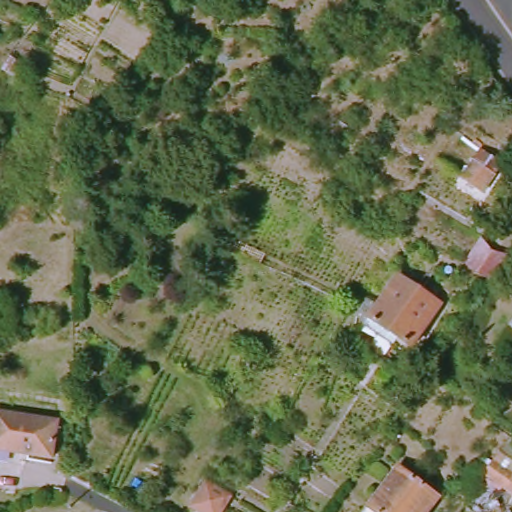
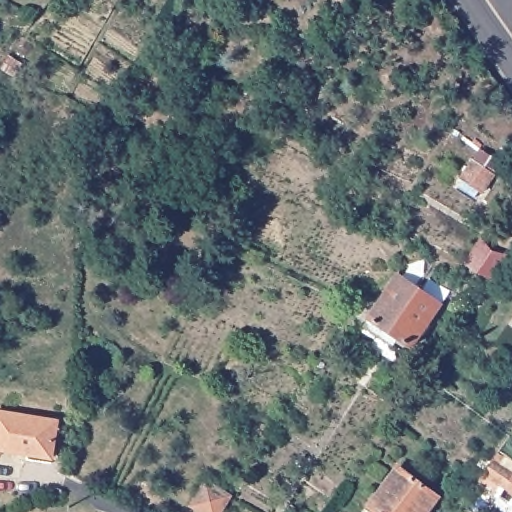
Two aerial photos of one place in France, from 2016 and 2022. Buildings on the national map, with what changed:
unchanged [(462,180),(473,165),(492,176),(480,193),(462,180)]
unchanged [(364,325),(398,279),(433,304),(399,352),(364,325)]
unchanged [(0,453),(0,416),(52,423),(46,460),(0,453)]
unchanged [(493,461),(512,474),(512,493),(505,488),(484,475),(493,461)]
unchanged [(367,505),(397,466),(435,494),(421,512),(376,512),(367,505)]
unchanged [(205,487),(219,496),(210,512),(190,512),(205,487)]

